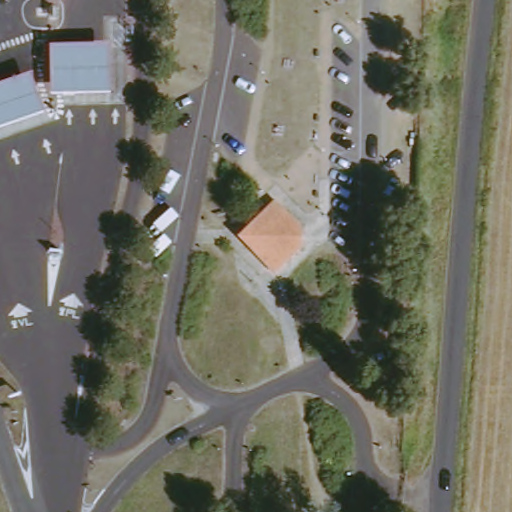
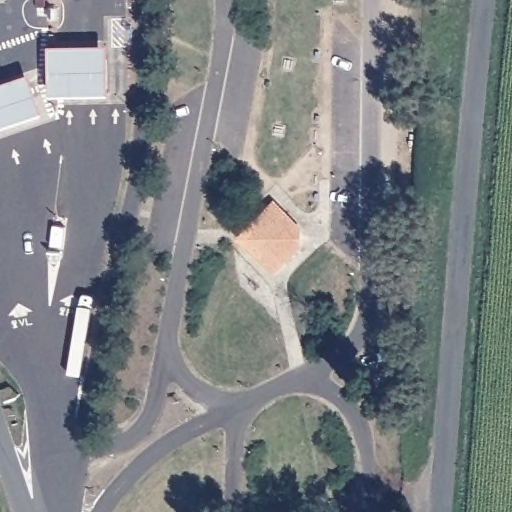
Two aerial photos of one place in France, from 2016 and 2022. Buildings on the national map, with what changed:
unchanged [(118,95),(60,99),(57,48),(114,44),(118,95)]
unchanged [(51,117),(0,133),(0,84),(35,75),(51,117)]
unchanged [(308,228),(307,252),(286,274),(250,240),(283,205),(308,228)]

